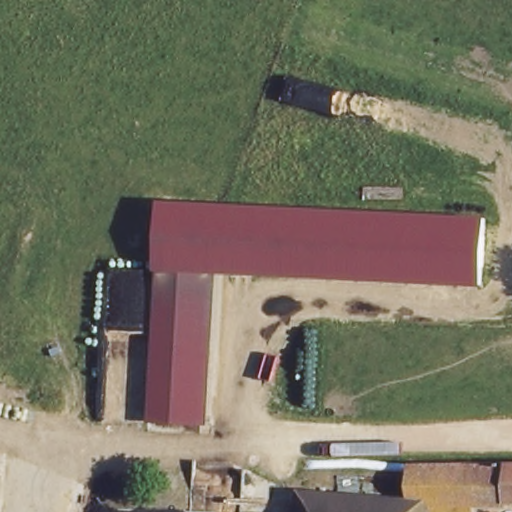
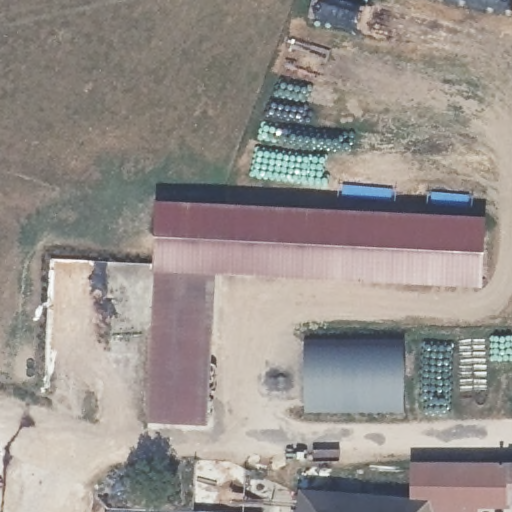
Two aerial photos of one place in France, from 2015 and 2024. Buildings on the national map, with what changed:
unchanged [(157,202),(487,217),(483,286),(208,271),(199,424),(146,423),(157,202)]
new [(304,339),(405,338),(405,414),(304,414),(304,339)]
unchanged [(421,508),(424,472),(454,472),(512,472),(512,509),(421,508)]
unchanged [(310,512),(311,505),(311,499),(359,503),(421,508),(421,512),(310,512)]

